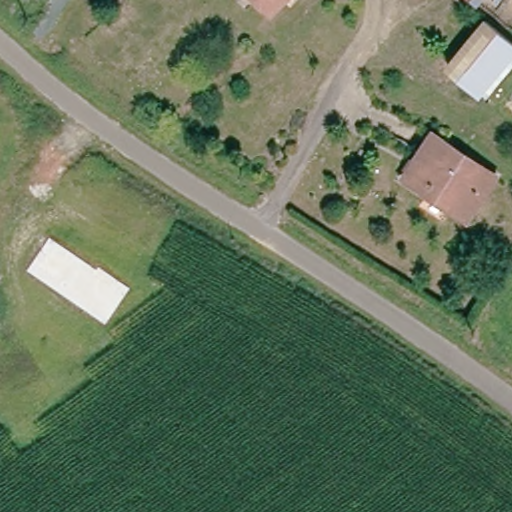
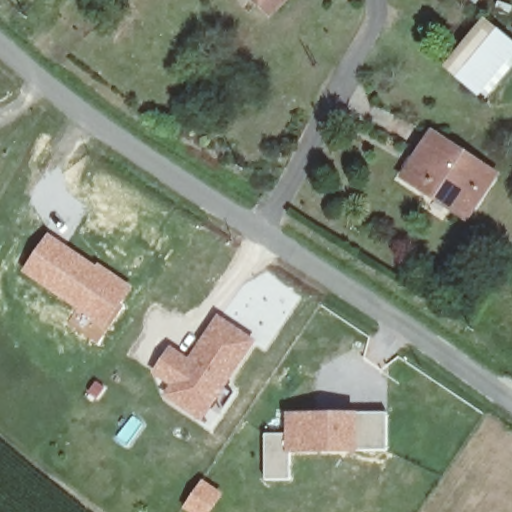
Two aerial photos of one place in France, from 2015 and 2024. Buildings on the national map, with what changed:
unchanged [(258,0),(269,0),(263,5),(258,0)]
unchanged [(292,0),(304,0),(298,6),(292,0)]
unchanged [(475,0),(512,0),(512,28),(475,0)]
unchanged [(483,19),(512,41),(512,47),(482,90),(449,66),(483,19)]
unchanged [(428,194),(403,179),(431,134),(493,173),(472,209),(466,219),(428,194)]
new [(97,267),(100,264),(135,288),(107,330),(22,272),(49,235),(97,267)]
new [(189,358),(218,314),(257,342),(203,423),(163,397),(171,386),(152,375),(172,347),(189,358)]
new [(287,437),(287,414),(359,414),(388,414),(388,452),(358,453),(292,454),(292,480),(267,481),(267,436),(287,437)]

